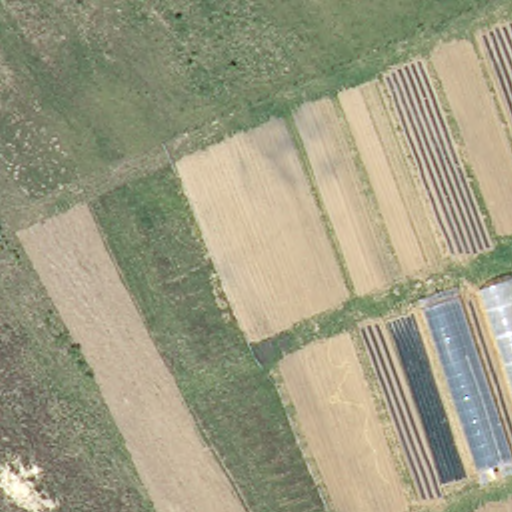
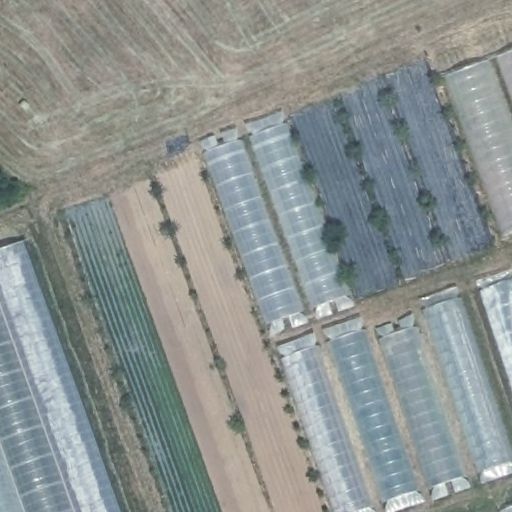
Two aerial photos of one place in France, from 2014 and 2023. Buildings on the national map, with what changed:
new [(272,322),(207,151),(287,121),(350,294),(272,322)]
new [(120,512),(0,512),(0,248),(21,240),(120,512)]
unchanged [(480,292),(512,280),(512,389),(480,292)]
new [(361,512),(333,512),(282,359),(365,328),(369,341),(426,320),(422,309),(460,296),(512,455),(512,461),(361,512)]
new [(493,512),(512,505),(512,512),(493,512)]

